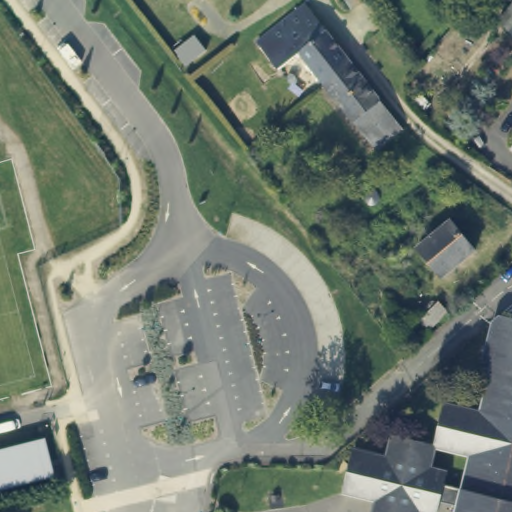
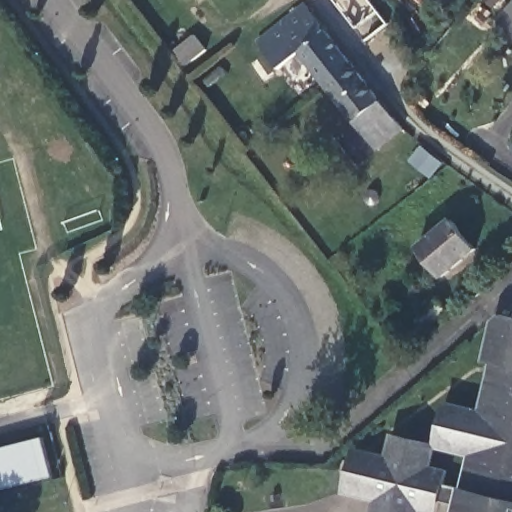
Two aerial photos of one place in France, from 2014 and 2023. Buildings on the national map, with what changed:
unchanged [(300,54),(278,71),(255,43),(303,5),(347,60),(341,64),(346,70),(326,86),(300,54)]
unchanged [(506,14),(512,9),(512,39),(497,22),(506,14)]
unchanged [(173,56),(192,41),(204,55),(184,71),(173,56)]
unchanged [(409,139),(382,160),(326,86),(346,70),(341,64),(347,60),(409,139)]
unchanged [(372,198),(374,198),(377,199),(378,201),(379,204),(377,207),(375,209),(372,209),(369,208),(367,204),(368,202),(370,199),(372,198)]
unchanged [(454,218),(475,246),(443,273),(420,244),(454,218)]
unchanged [(433,304),(443,315),(423,332),(414,320),(431,304),(433,304)]
unchanged [(363,494),(344,489),(355,446),(374,451),(387,454),(392,432),(436,444),(446,401),(464,406),(464,404),(482,409),(493,363),(484,360),(494,317),(499,312),(512,315),(512,512),(457,512),(458,504),(439,500),(436,512),(433,512),(420,509),(420,512),(373,512),(377,497),(363,494)]
unchanged [(38,435),(48,473),(0,485),(0,445),(38,435)]

